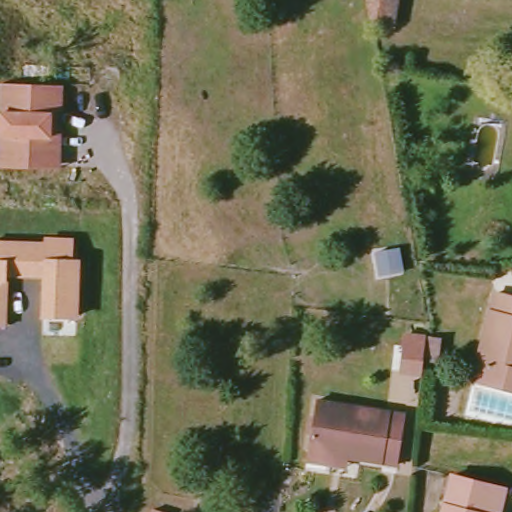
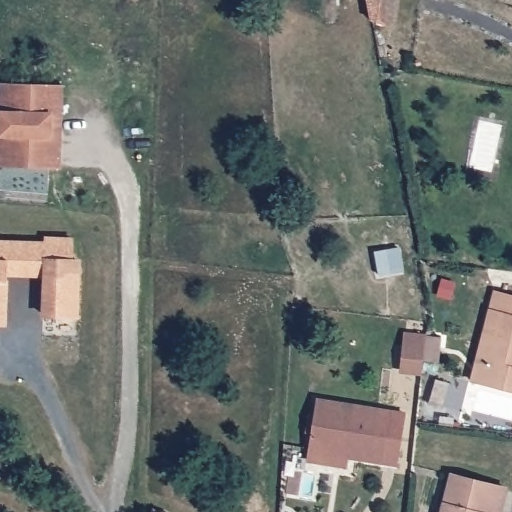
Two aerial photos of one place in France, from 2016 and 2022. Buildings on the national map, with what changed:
unchanged [(382,18),(363,15),(361,0),(385,0),(382,18)]
unchanged [(49,170),(0,168),(0,147),(3,85),(63,87),(61,117),(59,170),(49,170)]
unchanged [(41,249),(41,245),(70,246),(68,267),(74,267),(72,321),(38,320),(40,274),(2,272),(0,331),(0,247),(41,249)]
unchanged [(490,293),(512,298),(512,391),(468,380),(490,293)]
unchanged [(301,458),(303,448),(312,396),(400,414),(392,466),(344,457),(342,466),(301,458)]
unchanged [(503,490),(498,512),(440,512),(450,475),(503,490)]

